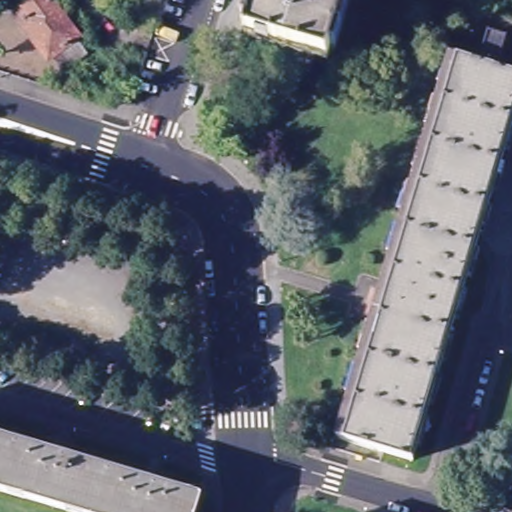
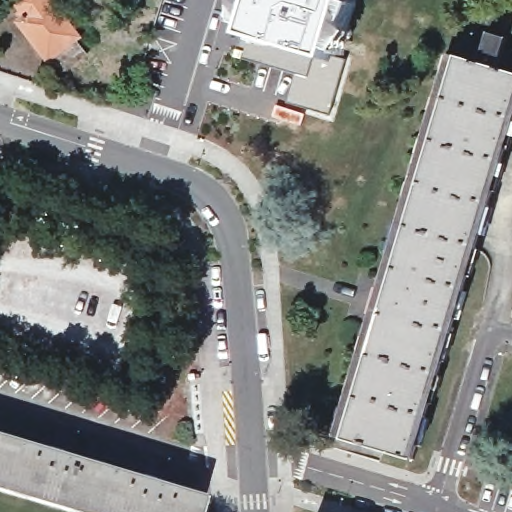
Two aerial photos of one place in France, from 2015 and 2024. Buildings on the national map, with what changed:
unchanged [(85,61),(63,78),(53,63),(47,66),(20,25),(28,20),(16,4),(22,0),(48,0),(79,44),(75,46),(85,61)]
unchanged [(348,0),(332,55),(317,51),(309,76),(240,54),(256,0),(348,0)]
demolished [(428,0),(426,8),(408,2),(409,0),(428,0)]
unchanged [(450,55),(479,64),(488,33),(507,39),(499,69),(512,74),(512,128),(413,461),(336,438),(450,55)]
new [(285,102),(293,70),(309,76),(317,51),(332,55),(346,59),(329,115),(285,102)]
unchanged [(197,512),(65,512),(0,492),(0,437),(201,498),(197,512)]

